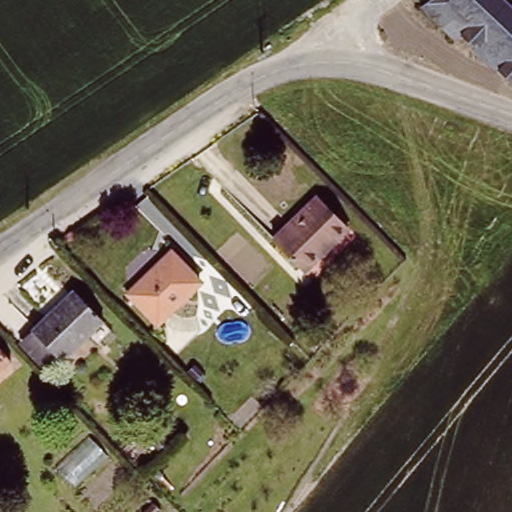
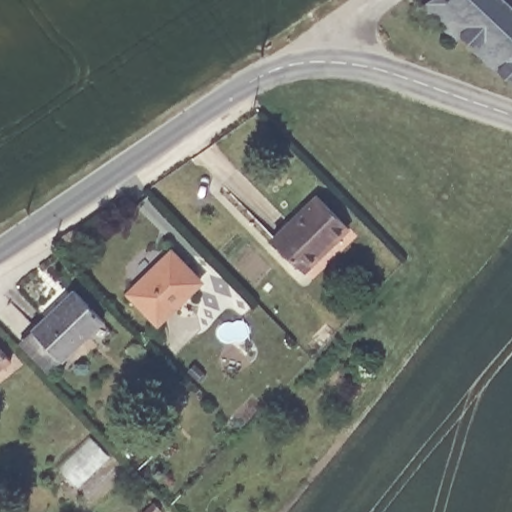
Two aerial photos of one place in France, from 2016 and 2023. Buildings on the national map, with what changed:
unchanged [(503,61),(500,65),(479,45),(482,42),(468,30),(463,35),(429,2),(433,0),(512,0),(512,70),(503,61)]
unchanged [(302,255),(275,227),(315,186),(348,220),(335,233),(307,260),(302,255)]
unchanged [(170,251),(201,281),(160,320),(130,290),(170,251)]
unchanged [(78,285),(109,317),(68,356),(37,325),(78,285)]
unchanged [(0,373),(0,344),(15,361),(0,373)]

